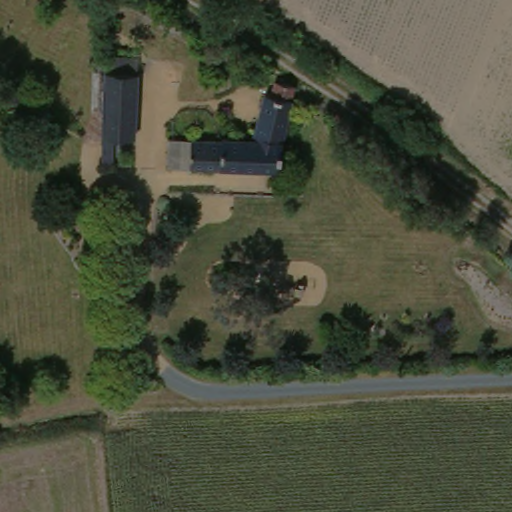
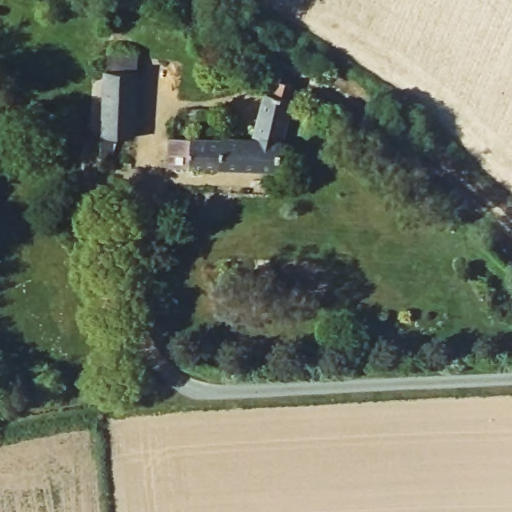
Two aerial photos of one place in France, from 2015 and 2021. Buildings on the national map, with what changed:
unchanged [(109,67),(114,67),(114,52),(144,53),(141,134),(108,133),(109,67)]
unchanged [(298,86),(289,169),(177,167),(178,134),(264,135),(269,98),(278,99),(280,84),(298,86)]

